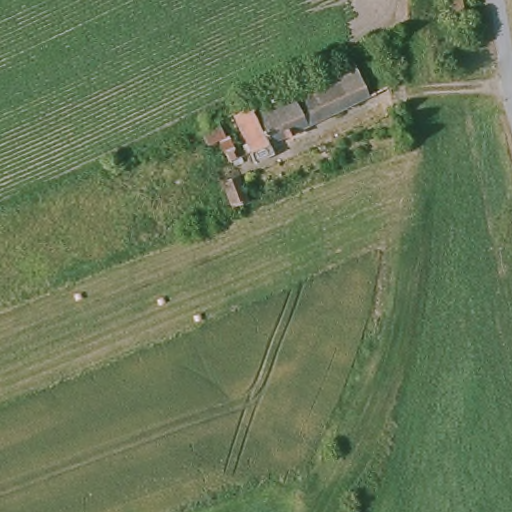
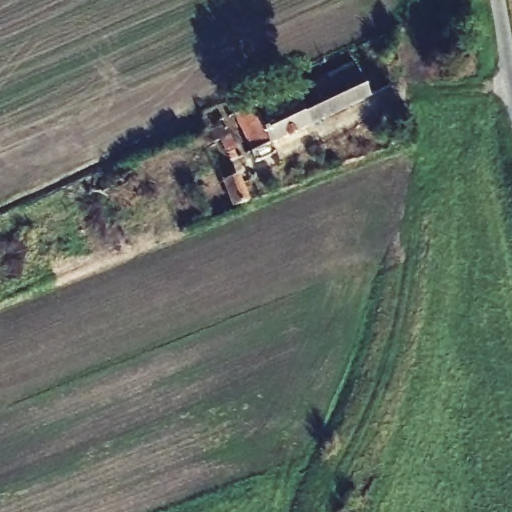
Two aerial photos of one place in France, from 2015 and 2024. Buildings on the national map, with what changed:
unchanged [(382,90),(279,134),(281,140),(262,150),(259,140),(261,133),(247,103),(301,79),(304,86),(341,70),(344,75),(354,72),(351,65),(368,59),(382,90)]
unchanged [(232,166),(239,189),(223,197),(213,174),(228,167),(232,166)]

